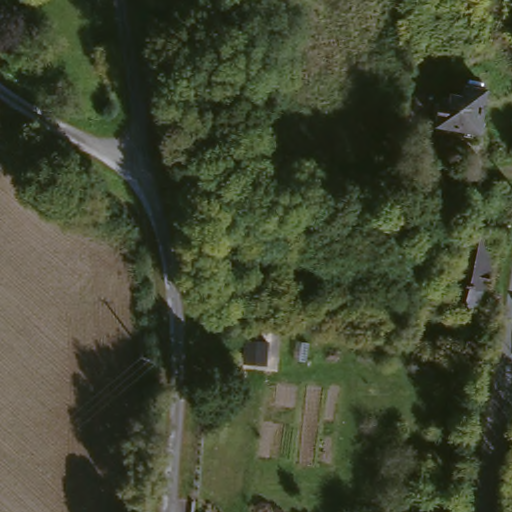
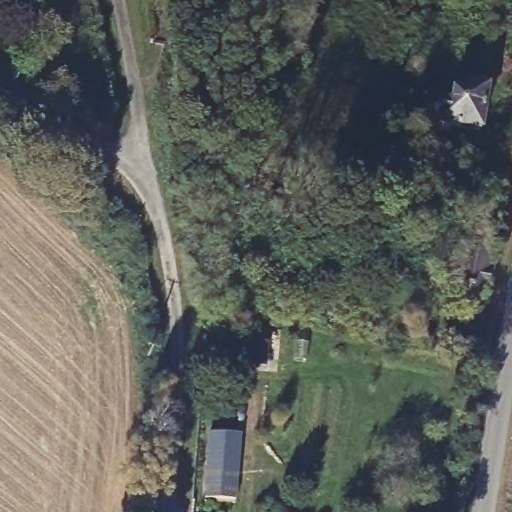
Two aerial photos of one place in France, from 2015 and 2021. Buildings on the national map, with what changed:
unchanged [(283,68),(279,131),(258,128),(261,65),(283,68)]
unchanged [(462,98),(463,89),(487,91),(479,138),(438,133),(443,108),(450,108),(452,97),(462,98)]
unchanged [(512,195),(512,208),(497,206),(499,192),(512,195)]
unchanged [(499,232),(485,313),(447,305),(466,225),(499,232)]
unchanged [(251,348),(270,351),(268,370),(249,367),(251,348)]
new [(236,501),(204,498),(209,433),(241,435),(236,501)]

